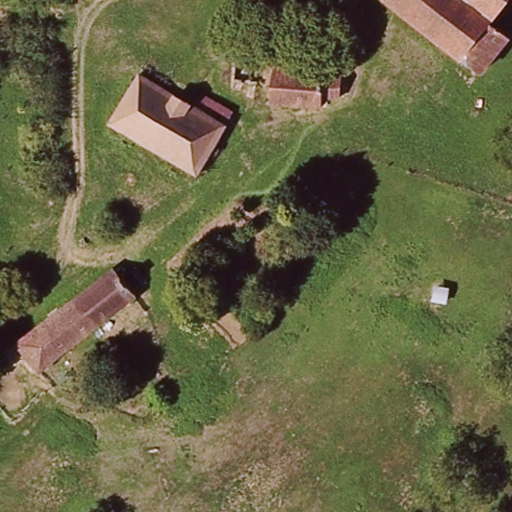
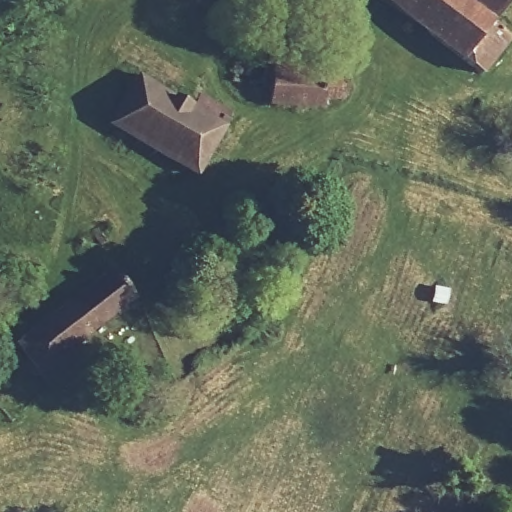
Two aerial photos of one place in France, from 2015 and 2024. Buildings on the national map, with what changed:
unchanged [(500,45),(473,81),(376,5),(381,0),(502,0),(480,29),(500,45)]
unchanged [(231,72),(276,75),(277,72),(352,77),(350,103),(326,101),(325,111),(273,107),(274,92),(230,90),(230,84),(231,72)]
unchanged [(108,132),(133,81),(187,110),(195,96),(215,107),(225,114),(191,179),(108,132)]
unchanged [(135,300),(37,378),(15,351),(112,277),(135,300)]

